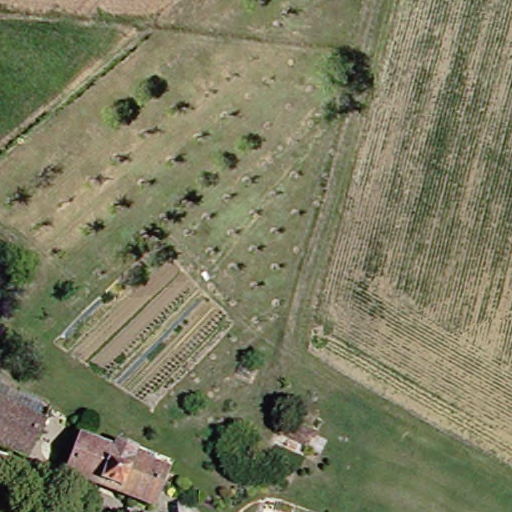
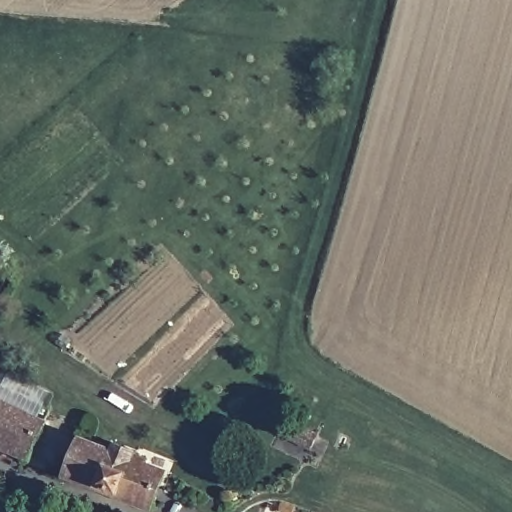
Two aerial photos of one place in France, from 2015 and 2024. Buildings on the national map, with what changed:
unchanged [(24,459),(0,451),(0,408),(38,423),(24,459)]
unchanged [(157,472),(146,509),(63,481),(75,444),(101,453),(105,443),(128,452),(125,460),(157,472)]

